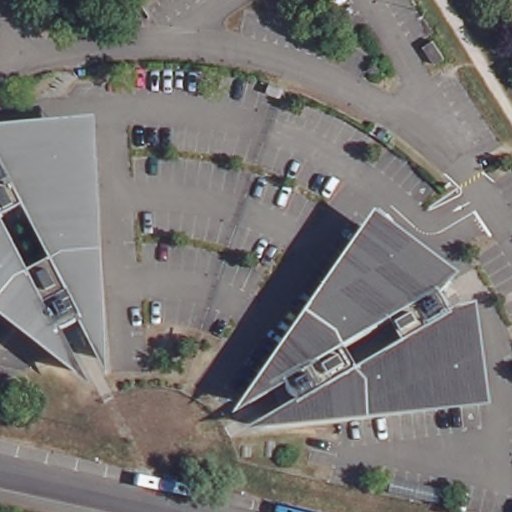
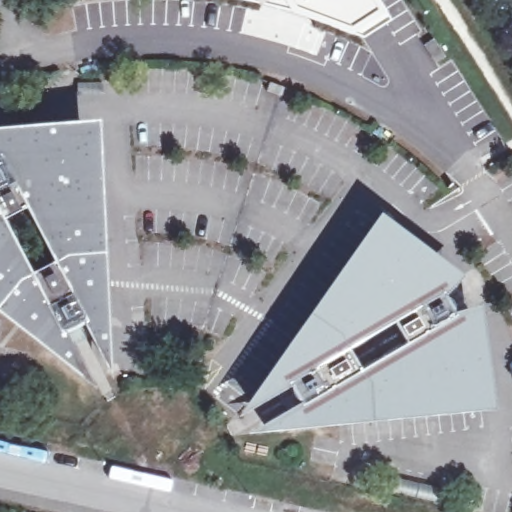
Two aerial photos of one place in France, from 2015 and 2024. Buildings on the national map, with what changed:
new [(390,16),(358,37),(278,8),(251,1),(241,0),(380,0),(390,16)]
unchanged [(426,54),(413,35),(425,26),(438,45),(426,54)]
unchanged [(266,91),(269,84),(283,88),(280,97),(266,91)]
unchanged [(83,132),(102,357),(100,357),(82,320),(71,327),(60,331),(79,368),(77,370),(0,306),(0,140),(83,132)]
unchanged [(463,310),(475,398),(260,427),(260,425),(295,404),(290,395),(283,383),(247,404),(245,402),(375,229),(447,282),(437,292),(442,298),(450,315),(463,310)]

